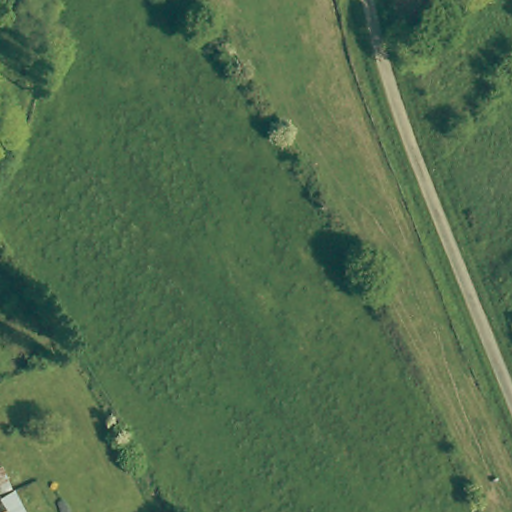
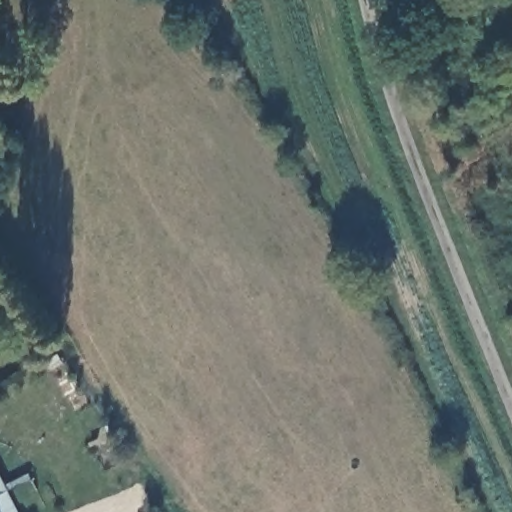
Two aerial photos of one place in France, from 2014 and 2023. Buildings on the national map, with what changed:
unchanged [(1,512),(0,512),(0,510),(1,512)]

